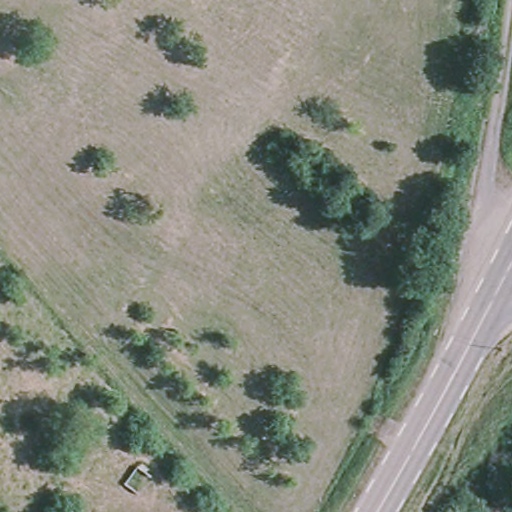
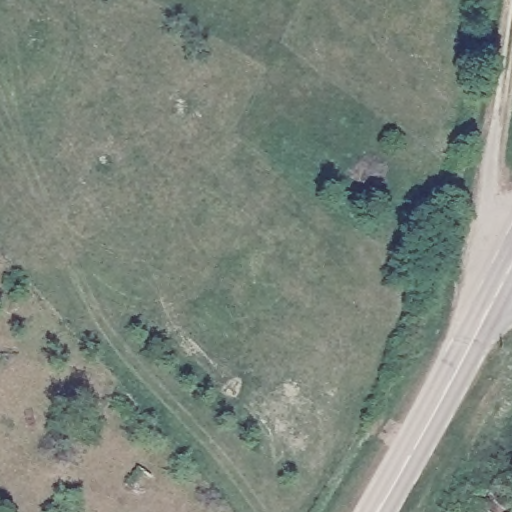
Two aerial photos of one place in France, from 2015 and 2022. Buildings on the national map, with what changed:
unchanged [(512,502),(503,512),(489,512),(467,492),(488,472),(512,497),(512,502)]

